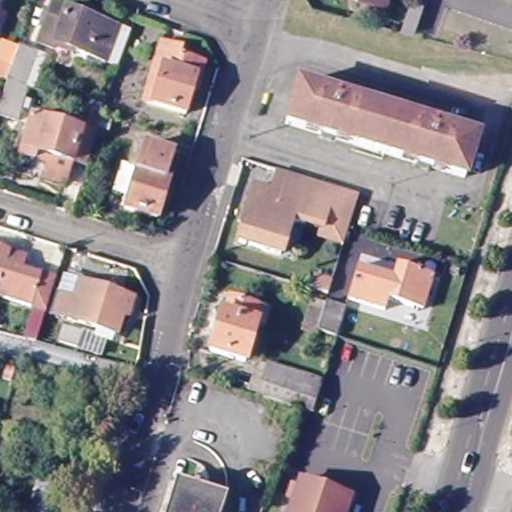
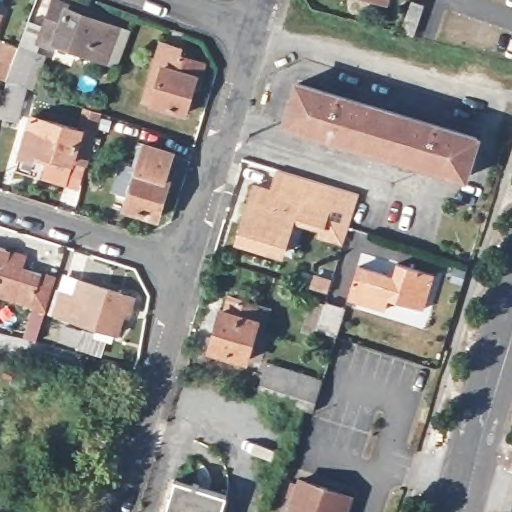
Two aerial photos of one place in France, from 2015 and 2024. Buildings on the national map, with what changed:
unchanged [(360,0),(375,0),(374,5),(360,0)]
unchanged [(113,65),(60,45),(64,35),(50,31),(59,5),(91,17),(92,15),(99,17),(97,24),(123,33),(113,65)]
unchanged [(423,16),(416,36),(405,33),(411,13),(423,16)]
unchanged [(10,22),(0,50),(0,18),(10,22)]
unchanged [(22,120),(2,113),(10,79),(0,76),(0,60),(15,65),(22,46),(40,52),(28,85),(33,87),(22,120)]
unchanged [(200,94),(195,92),(187,117),(153,105),(147,103),(158,68),(164,46),(188,53),(186,62),(205,68),(200,86),(202,86),(200,94)]
unchanged [(477,138),(466,177),(288,124),(300,83),(477,138)]
unchanged [(24,155),(37,119),(49,123),(51,118),(81,128),(88,105),(104,111),(92,165),(77,160),(68,185),(47,178),(51,164),(39,160),(24,155)]
unchanged [(183,159),(175,185),(180,187),(169,222),(137,212),(140,203),(125,198),(134,169),(149,174),(157,150),(183,159)]
unchanged [(343,226),(337,245),(327,216),(324,224),(309,219),(306,226),(290,222),(281,254),(236,241),(249,197),(253,184),(272,191),(279,171),(311,181),(317,183),(335,188),(353,194),(343,226)]
unchanged [(0,296),(0,246),(12,250),(33,256),(30,268),(58,277),(48,311),(39,339),(25,335),(34,306),(0,296)]
unchanged [(436,284),(426,321),(391,310),(388,320),(353,309),(367,263),(436,284)]
unchanged [(331,280),(328,292),(312,288),(315,275),(331,280)]
unchanged [(130,315),(125,313),(118,337),(55,318),(63,293),(68,276),(83,281),(136,297),(130,315)]
unchanged [(270,308),(266,323),(260,321),(247,362),(209,350),(222,309),(227,311),(231,296),(260,305),(270,308)]
unchanged [(335,334),(317,328),(314,335),(299,330),(309,298),(325,303),(325,301),(344,307),(335,334)]
unchanged [(104,339),(100,352),(58,341),(63,327),(104,339)]
unchanged [(293,407),(260,396),(249,393),(256,370),(258,371),(261,361),(270,364),(325,381),(315,414),(293,407)]
unchanged [(35,494),(40,478),(58,484),(53,499),(49,512),(29,512),(35,494)]
unchanged [(177,479),(227,494),(221,512),(166,512),(177,479)]
unchanged [(346,495),(341,512),(288,512),(292,500),(284,497),(289,482),(297,485),(299,480),(346,495)]

